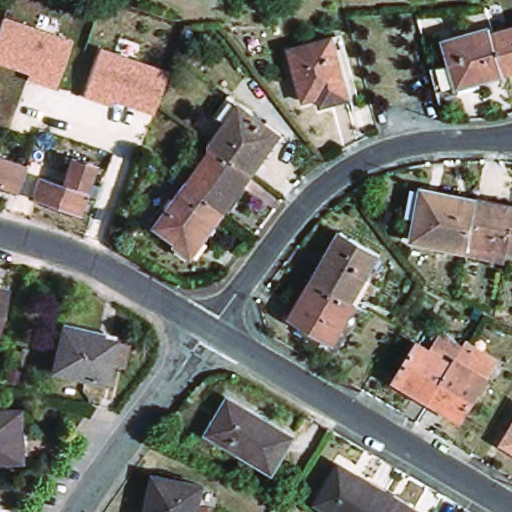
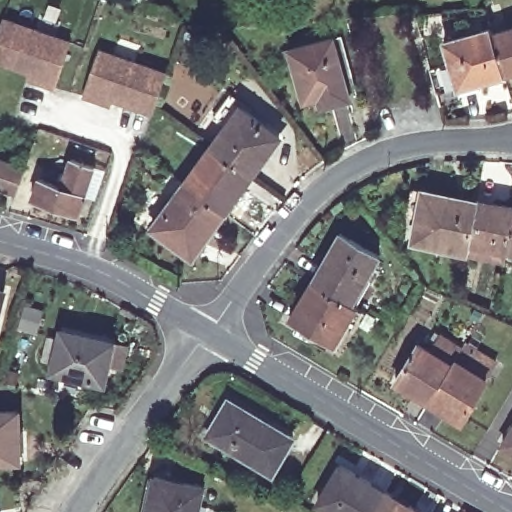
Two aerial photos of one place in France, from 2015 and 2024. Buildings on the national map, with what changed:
unchanged [(28,78),(29,73),(0,63),(0,25),(4,13),(73,39),(55,86),(28,78)]
unchanged [(431,76),(451,70),(444,46),(491,34),(493,40),(504,82),(457,95),(437,100),(431,76)]
unchanged [(512,36),(512,80),(504,82),(493,40),(512,36)]
unchanged [(313,105),(300,108),(286,58),(329,46),(337,43),(353,104),(346,106),(316,114),(313,105)]
unchanged [(99,45),(169,69),(154,111),(114,98),(111,104),(84,94),(99,45)]
unchanged [(244,108),(284,138),(255,178),(216,149),(215,148),(244,108)]
unchanged [(190,186),(216,149),(255,178),(229,215),(190,186)]
unchanged [(82,213),(32,196),(38,173),(64,181),(71,156),(97,165),(82,213)]
unchanged [(16,194),(0,188),(0,161),(25,170),(16,194)]
unchanged [(196,259),(156,229),(188,185),(190,186),(229,215),(196,259)]
unchanged [(414,242),(423,192),(476,203),(469,245),(467,254),(414,242)]
unchanged [(512,224),(506,253),(469,245),(476,203),(476,202),(512,209),(512,224)]
unchanged [(512,256),(506,255),(506,253),(512,224),(512,256)]
unchanged [(345,233),(384,256),(357,304),(317,281),(345,233)]
unchanged [(357,304),(362,307),(338,347),(294,321),(317,281),(357,304)]
unchanged [(0,323),(0,292),(7,293),(0,323)]
unchanged [(54,376),(64,334),(117,347),(132,351),(127,373),(112,369),(107,389),(54,376)]
unchanged [(461,356),(454,368),(429,409),(395,389),(417,351),(430,360),(440,343),(461,356)]
unchanged [(473,358),(495,370),(485,387),(486,387),(462,428),(429,409),(454,368),(461,356),(471,362),(473,358)]
unchanged [(272,472),(207,435),(228,399),(294,438),(272,472)]
unchanged [(19,466),(0,467),(0,416),(16,415),(19,466)]
unchanged [(512,437),(512,450),(506,446),(512,437)]
unchanged [(344,471),(390,498),(382,512),(326,512),(322,509),(344,471)]
unchanged [(150,512),(155,483),(204,491),(200,512),(150,512)]
unchanged [(415,512),(382,512),(390,498),(415,512)]

